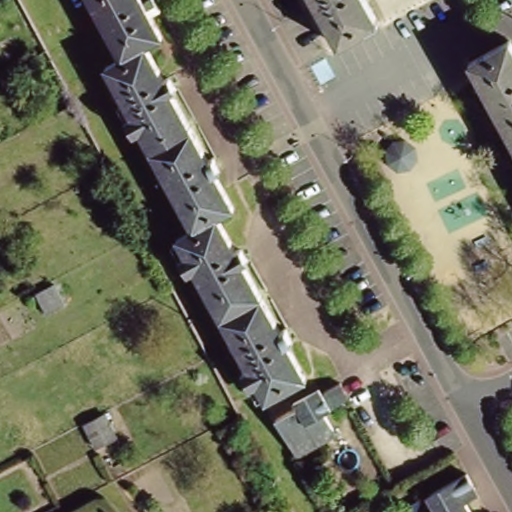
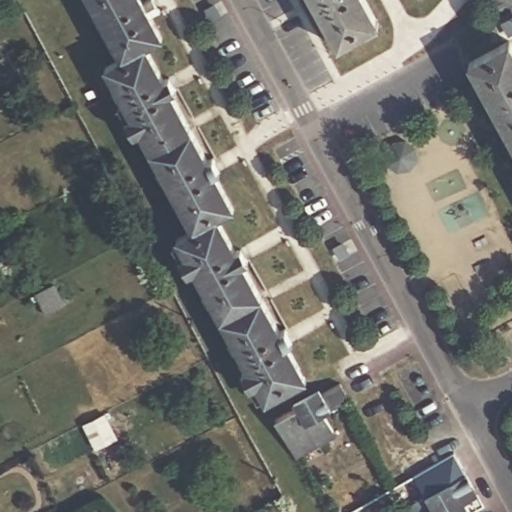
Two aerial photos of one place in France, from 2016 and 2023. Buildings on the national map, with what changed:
unchanged [(137,122),(108,69),(124,61),(91,0),(141,0),(162,39),(147,48),(167,85),(172,83),(180,97),(175,100),(210,163),(215,160),(222,174),(217,176),(226,192),(187,213),(145,138),(140,141),(131,125),(137,122)]
unchanged [(362,0),(373,21),(333,43),(311,0),(362,0)]
unchanged [(510,37),(512,41),(512,133),(471,58),(510,37)]
unchanged [(244,376),(251,372),(197,274),(191,277),(183,261),(188,258),(180,241),(197,231),(187,213),(226,192),(236,210),(218,219),(238,255),(242,253),(250,266),(245,268),(282,335),(287,332),(294,344),(289,347),(307,381),(268,402),(260,387),(252,391),(244,376)]
unchanged [(38,294),(56,284),(66,302),(48,312),(38,294)]
unchanged [(317,446),(293,459),(277,429),(272,421),(290,412),(287,407),(309,395),(311,400),(336,386),(341,395),(345,403),(320,416),(330,434),(332,437),(317,446)]
unchanged [(115,437),(95,448),(82,425),(102,414),(115,437)]
unchanged [(435,511),(425,492),(463,472),(473,491),(477,497),(462,505),(466,512),(433,512),(435,511)]

